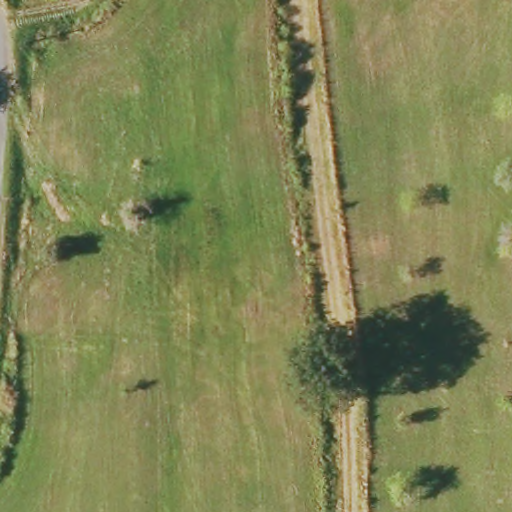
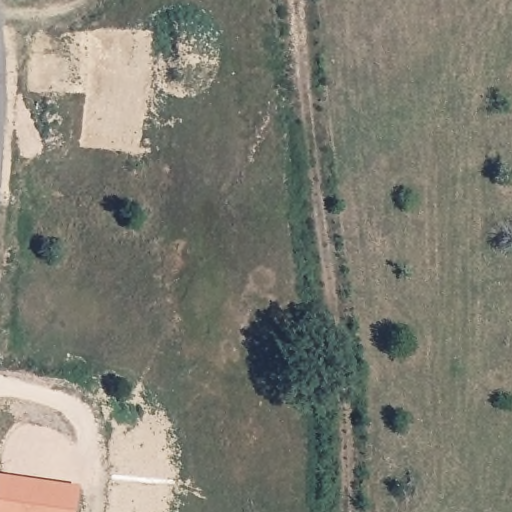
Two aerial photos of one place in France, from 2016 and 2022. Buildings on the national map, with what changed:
new [(78,490),(75,512),(0,512),(0,478),(78,490)]

